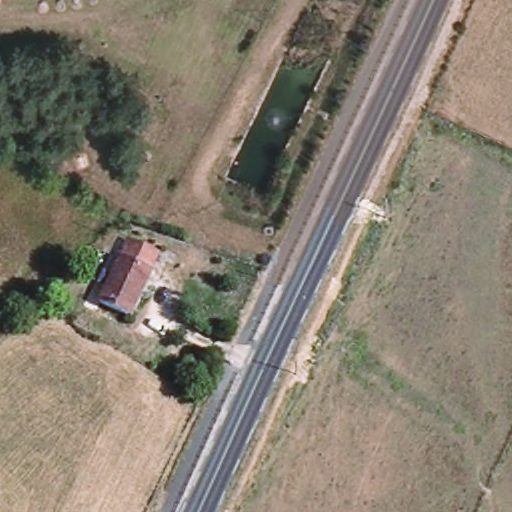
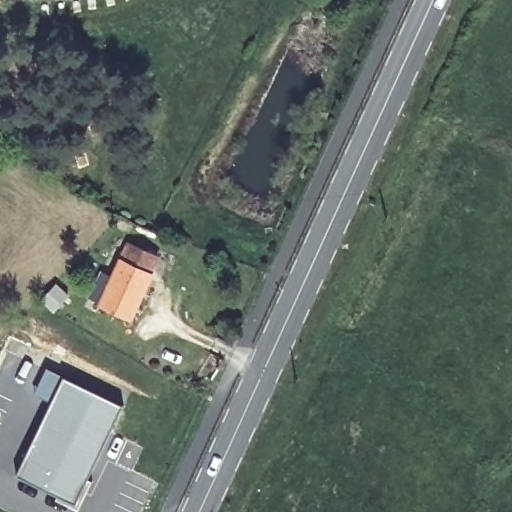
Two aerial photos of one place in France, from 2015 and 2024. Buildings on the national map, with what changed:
unchanged [(158,257),(149,274),(151,276),(131,317),(100,305),(129,244),(158,257)]
new [(19,472),(54,402),(35,393),(47,368),(123,406),(76,502),(19,472)]

